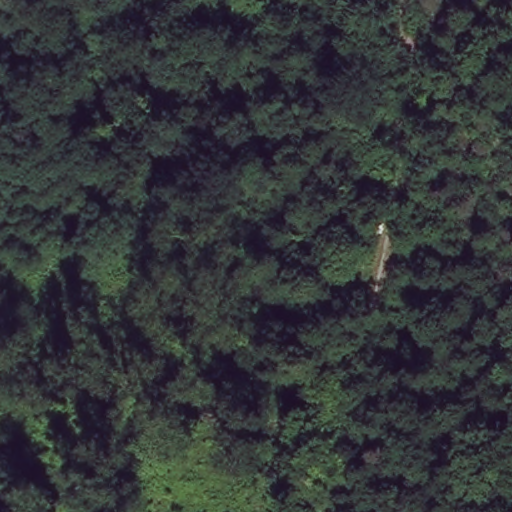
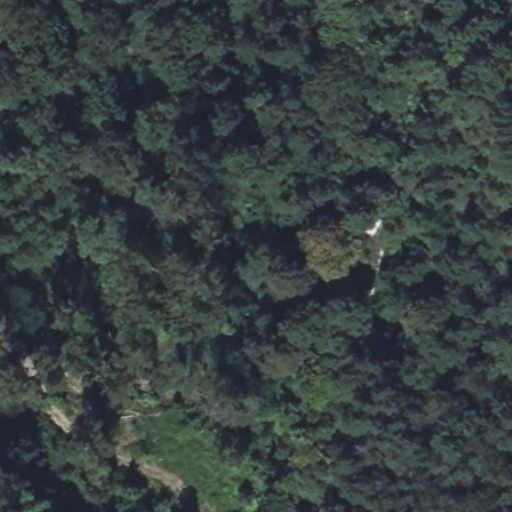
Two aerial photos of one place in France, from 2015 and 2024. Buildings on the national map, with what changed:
[]

